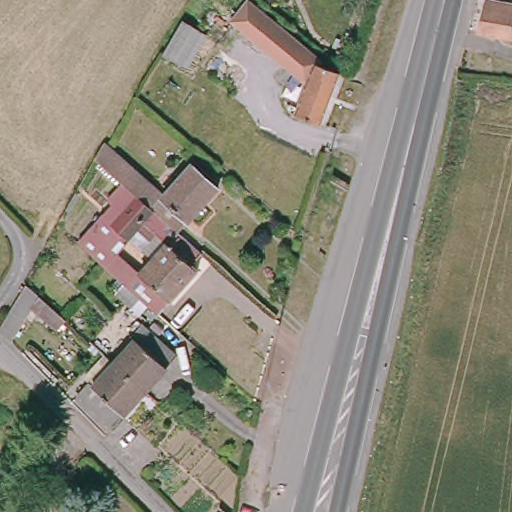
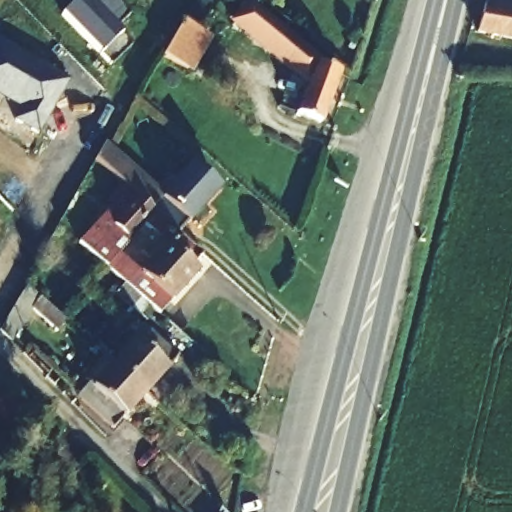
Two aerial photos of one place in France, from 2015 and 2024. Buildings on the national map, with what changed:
new [(120,35),(129,45),(109,64),(61,15),(76,0),(119,0),(124,6),(121,9),(130,17),(118,28),(120,35)]
unchanged [(298,66),(293,73),(227,18),(241,0),(245,0),(302,49),(320,62),(319,65),(339,73),(320,126),(288,115),(292,103),(297,105),(310,71),(298,66)]
unchanged [(487,0),(512,5),(512,39),(480,35),(487,0)]
unchanged [(201,32),(187,56),(182,67),(164,57),(182,22),(201,32)]
new [(35,136),(11,123),(19,109),(0,98),(0,45),(67,82),(35,136)]
unchanged [(94,160),(103,145),(163,198),(192,165),(219,188),(178,234),(112,175),(94,160)]
unchanged [(115,294),(124,285),(75,243),(110,204),(97,192),(112,175),(178,234),(203,256),(195,266),(200,271),(160,317),(140,301),(133,309),(115,294)]
unchanged [(67,321),(57,333),(32,310),(15,339),(0,331),(0,328),(25,282),(67,321)]
unchanged [(130,338),(142,324),(177,358),(145,392),(114,363),(134,341),(130,338)]
unchanged [(112,428),(77,396),(85,386),(81,382),(105,355),(114,363),(145,392),(112,428)]

